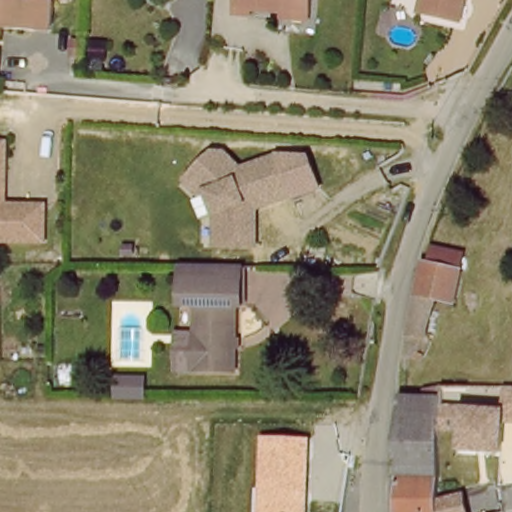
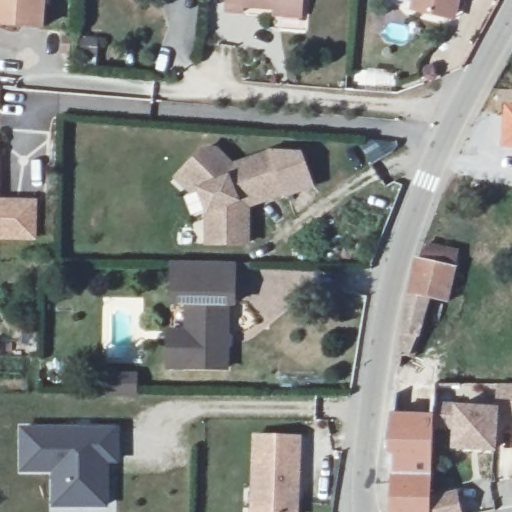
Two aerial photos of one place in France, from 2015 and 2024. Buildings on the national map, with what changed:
unchanged [(0,25),(0,0),(46,0),(43,30),(0,25)]
unchanged [(272,10),(241,7),(241,13),(224,12),(225,0),(300,0),(300,11),(300,17),(271,15),(272,10)]
unchanged [(444,24),(408,15),(411,0),(455,0),(449,25),(444,24)]
unchanged [(68,55),(61,55),(63,37),(70,38),(68,55)]
new [(504,102),(512,103),(512,149),(499,148),(504,102)]
unchanged [(229,160),(242,181),(284,176),(288,207),(248,211),(241,237),(238,250),(199,249),(200,236),(200,217),(207,217),(207,195),(205,195),(192,174),(219,157),(229,160)]
unchanged [(36,227),(35,240),(0,239),(0,203),(36,203),(36,227)]
unchanged [(445,247),(438,280),(429,319),(433,320),(426,337),(420,336),(425,340),(422,345),(414,340),(410,341),(412,312),(428,244),(445,247)]
unchanged [(239,260),(241,260),(240,300),(233,300),(233,364),(192,363),(193,298),(178,298),(179,258),(239,260)]
unchanged [(112,374),(139,375),(139,393),(112,393),(112,374)]
unchanged [(396,512),(401,454),(393,447),(401,392),(426,393),(423,385),(440,381),(438,438),(435,495),(458,490),(462,512),(396,512)]
unchanged [(498,385),(512,385),(512,413),(488,412),(488,419),(480,440),(438,438),(440,381),(489,381),(498,381),(498,385)]
new [(118,427),(118,463),(108,463),(108,507),(51,507),(52,473),(19,472),(19,427),(118,427)]
unchanged [(301,512),(253,512),(255,434),(303,435),(301,512)]

